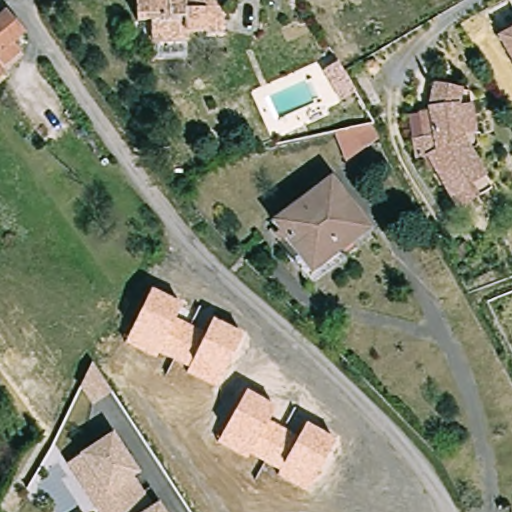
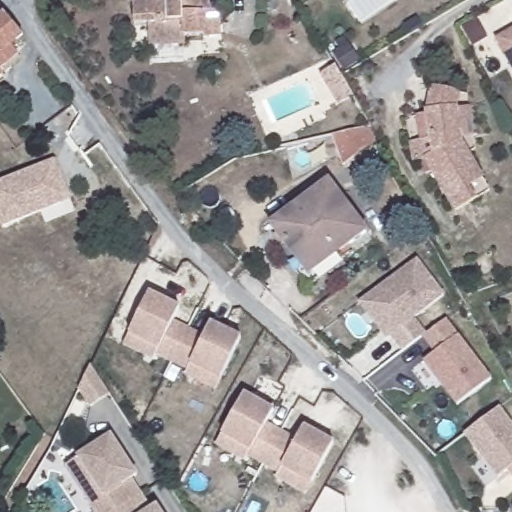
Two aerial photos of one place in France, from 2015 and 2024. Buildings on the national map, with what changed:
unchanged [(185,35),(185,42),(152,44),(150,20),(134,21),(133,0),(229,0),(229,4),(221,5),(222,24),(222,33),(206,34),(185,35)]
unchanged [(23,33),(17,37),(20,42),(14,47),(18,53),(0,69),(0,18),(6,12),(23,33)]
unchanged [(512,30),(512,62),(498,37),(512,30)]
unchanged [(336,64),(354,95),(340,105),(321,75),(336,64)]
unchanged [(475,204),(456,216),(424,165),(412,167),(408,147),(419,145),(415,119),(424,118),(425,118),(423,116),(423,100),(427,92),(454,96),(452,112),(459,144),(482,182),(490,195),(475,204)]
unchanged [(372,127),(379,140),(378,141),(346,165),(338,145),(334,137),(372,127)]
new [(72,200),(2,228),(0,222),(0,182),(55,160),(72,200)]
unchanged [(313,274),(275,226),(332,182),(370,230),(313,274)]
new [(415,257),(444,294),(413,318),(424,334),(400,351),(390,336),(386,339),(357,302),(415,257)]
unchanged [(175,318),(205,333),(209,323),(239,337),(222,377),(218,390),(185,376),(187,370),(158,357),(155,362),(126,347),(130,332),(149,292),(179,308),(175,318)]
new [(493,377),(460,403),(426,359),(437,350),(425,334),(448,317),(493,377)]
unchanged [(79,390),(91,364),(110,395),(91,408),(79,390)]
unchanged [(270,421),(299,438),(304,427),(332,441),(312,482),(308,495),(277,479),(279,474),(249,459),(246,463),(219,447),(224,433),(245,392),(275,410),(270,421)]
new [(512,423),(512,476),(507,470),(498,478),(464,434),(500,407),(512,423)]
unchanged [(70,461),(83,453),(115,433),(132,459),(140,472),(134,475),(154,507),(160,503),(165,512),(102,512),(94,500),(70,461)]

